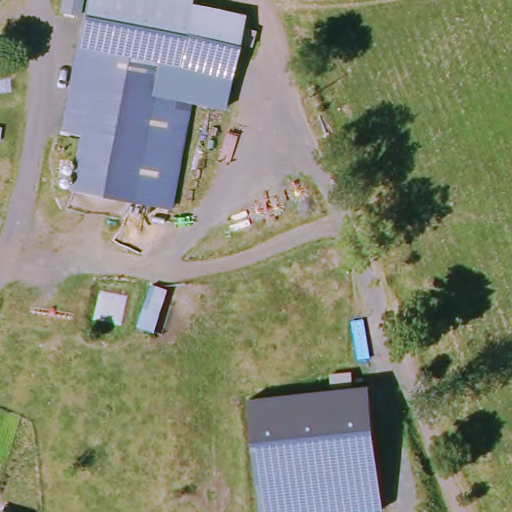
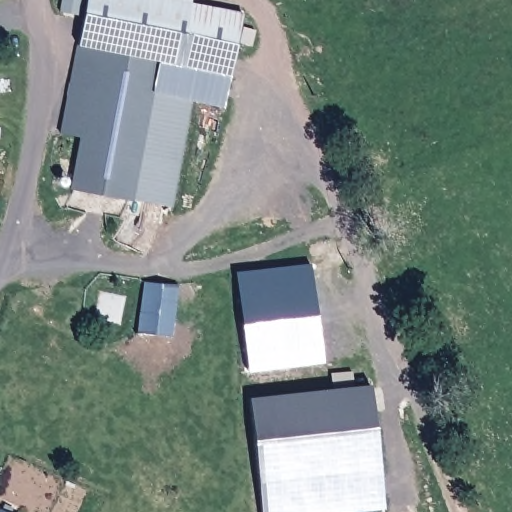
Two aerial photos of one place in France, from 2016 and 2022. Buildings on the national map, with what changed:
unchanged [(235,42),(224,106),(190,100),(165,236),(66,217),(89,89),(70,85),(85,0),(181,0),(190,2),(185,33),(235,42)]
unchanged [(235,42),(185,33),(190,2),(219,7),(244,11),(240,28),(235,42)]
new [(329,363),(250,374),(235,267),(313,261),(329,363)]
new [(142,282),(179,286),(172,337),(137,333),(142,282)]
unchanged [(390,512),(265,512),(253,403),(377,390),(390,512)]
new [(0,511),(2,512),(0,512),(0,511)]

